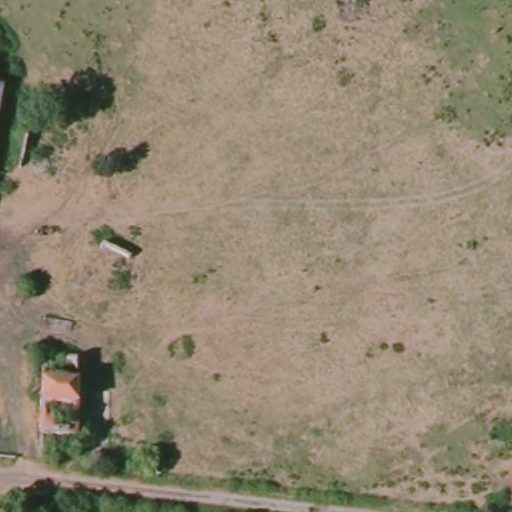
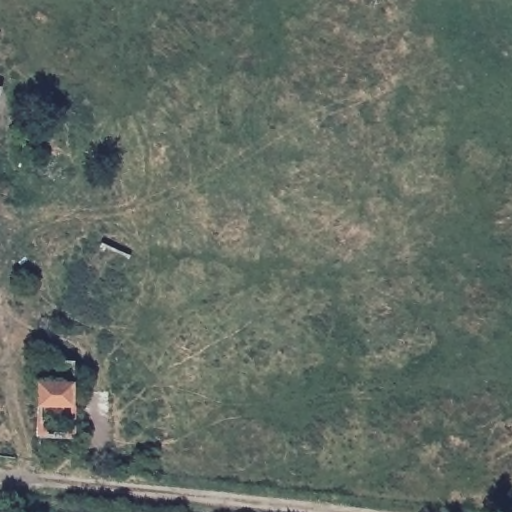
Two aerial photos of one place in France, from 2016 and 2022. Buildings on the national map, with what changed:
unchanged [(2,87),(0,101),(0,87),(2,87)]
unchanged [(75,379),(75,410),(75,437),(37,439),(37,409),(35,380),(75,379)]

